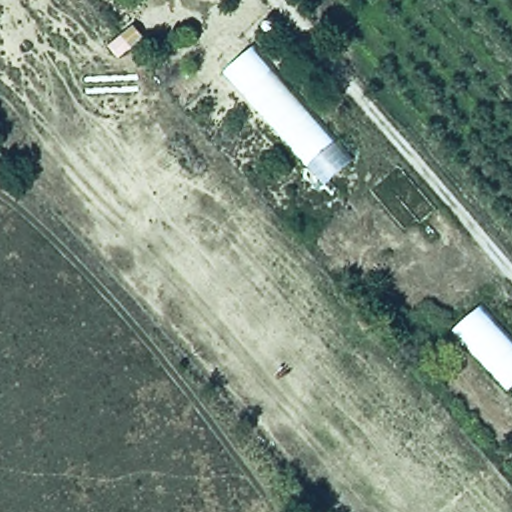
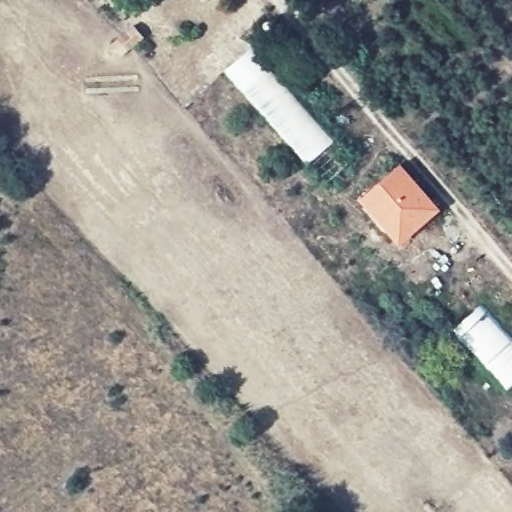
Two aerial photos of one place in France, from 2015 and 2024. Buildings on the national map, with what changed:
unchanged [(352,159),(325,184),(225,69),(252,46),(352,159)]
new [(435,208),(420,223),(417,220),(397,238),(379,218),(387,210),(370,191),(398,166),(435,208)]
unchanged [(512,386),(506,391),(452,332),(479,306),(512,342),(512,386)]

